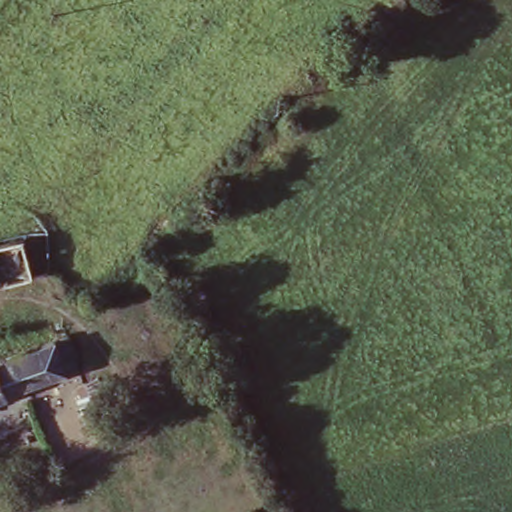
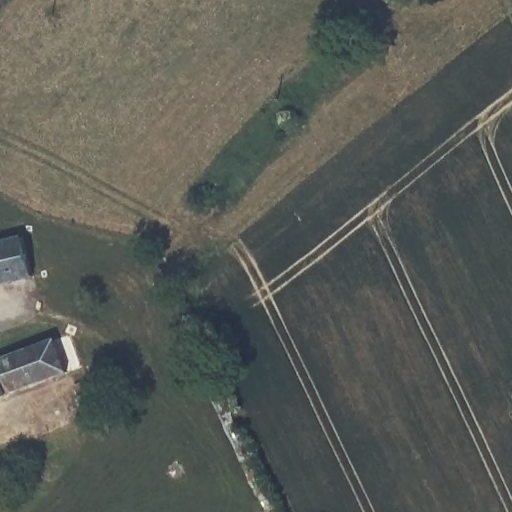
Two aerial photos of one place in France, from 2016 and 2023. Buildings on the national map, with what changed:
unchanged [(28,232),(41,270),(0,284),(0,243),(28,232)]
unchanged [(70,337),(82,368),(0,399),(0,364),(70,337)]
unchanged [(75,413),(70,399),(78,396),(74,387),(96,379),(105,402),(75,413)]

